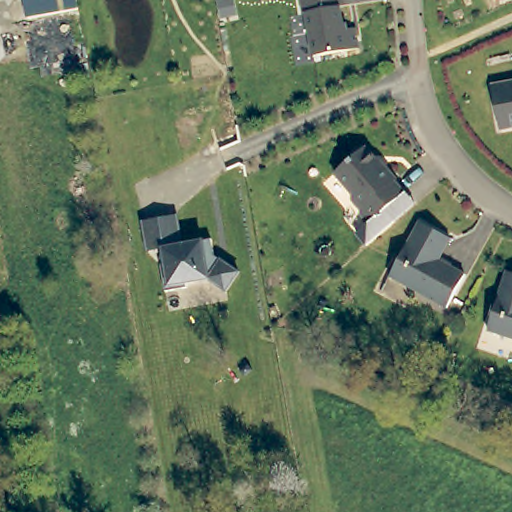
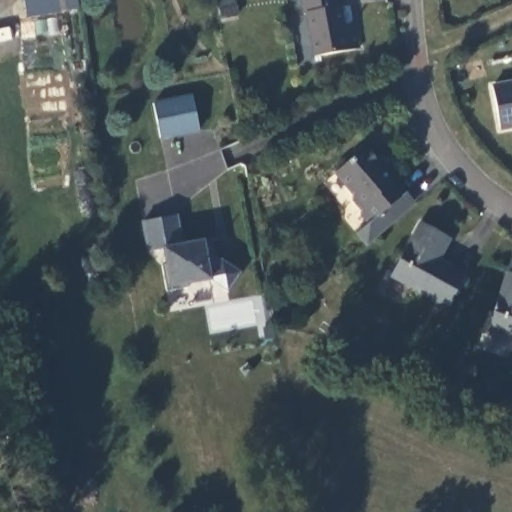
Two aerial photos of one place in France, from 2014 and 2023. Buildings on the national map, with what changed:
unchanged [(29,13),(27,0),(79,0),(80,4),(29,13)]
unchanged [(337,0),(339,6),(340,7),(345,31),(357,29),(361,51),(315,60),(306,15),(304,15),(301,0),(337,0)]
unchanged [(497,132),(489,87),(512,83),(512,128),(497,132)]
new [(200,131),(161,139),(153,102),(191,95),(200,131)]
unchanged [(356,212),(349,202),(348,197),(333,177),(351,162),(352,156),(360,150),(364,150),(380,170),(383,167),(393,180),(390,182),(402,195),(365,227),(356,216),(356,212)]
unchanged [(177,212),(182,242),(165,247),(148,250),(143,219),(177,212)]
unchanged [(451,242),(438,267),(447,271),(449,267),(464,276),(447,310),(391,278),(421,225),(451,242)]
unchanged [(208,276),(204,277),(198,239),(211,237),(215,253),(240,271),(226,289),(208,276)]
unchanged [(186,281),(187,285),(166,288),(161,262),(168,261),(165,247),(182,242),(198,239),(204,277),(186,281)]
unchanged [(492,337),(507,277),(512,279),(512,342),(492,337)]

